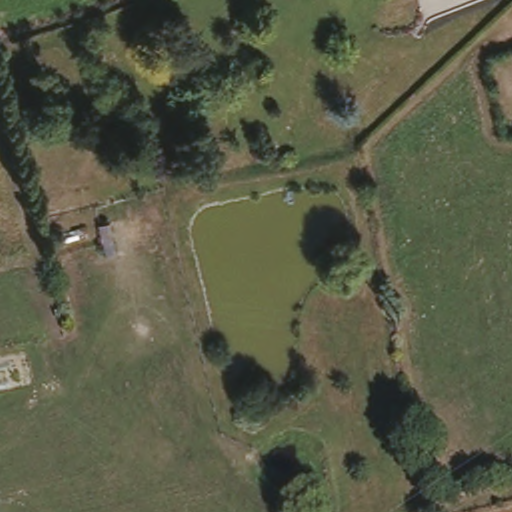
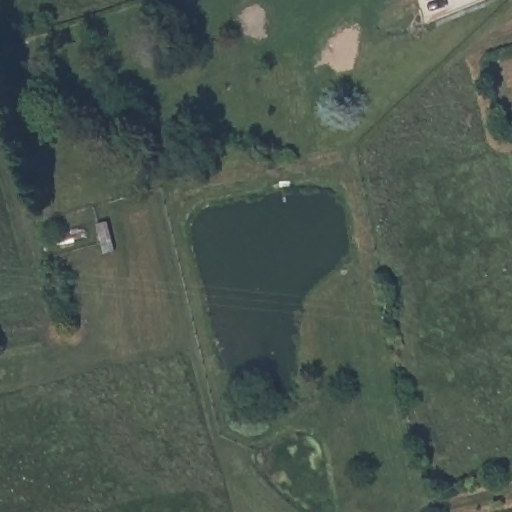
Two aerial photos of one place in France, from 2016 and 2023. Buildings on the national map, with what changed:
[]

